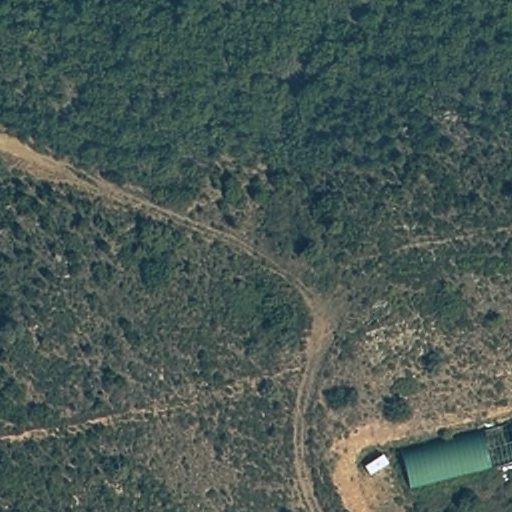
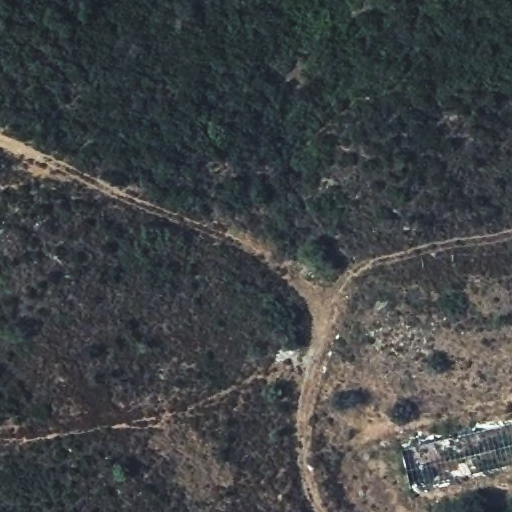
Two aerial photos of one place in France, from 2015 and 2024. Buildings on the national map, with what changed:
unchanged [(512,426),(512,462),(405,486),(401,450),(512,426)]

